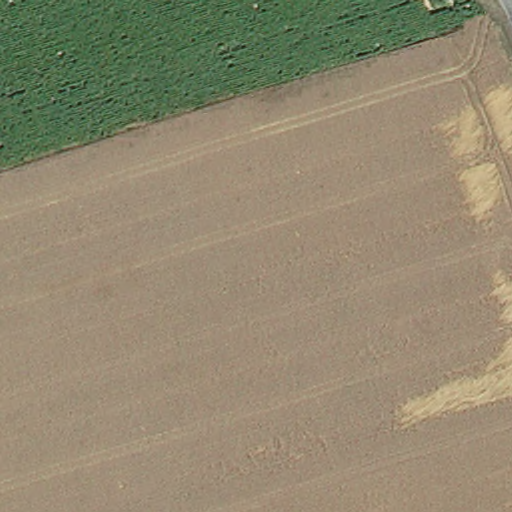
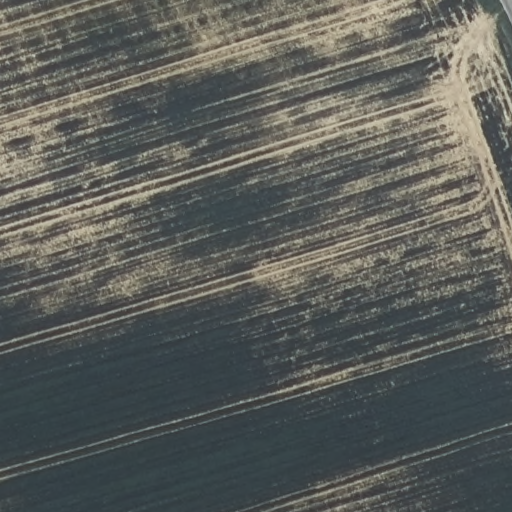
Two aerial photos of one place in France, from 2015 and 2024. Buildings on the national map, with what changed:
[]

